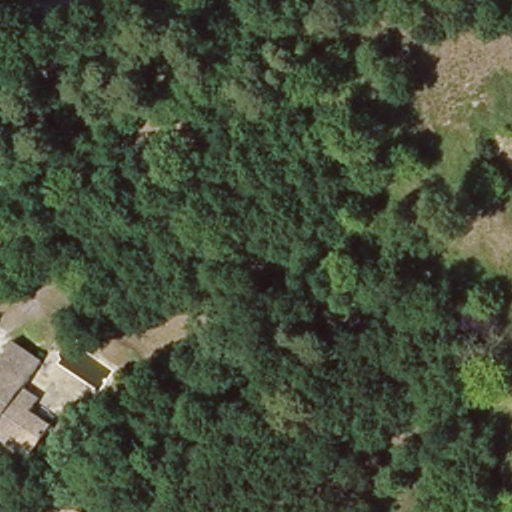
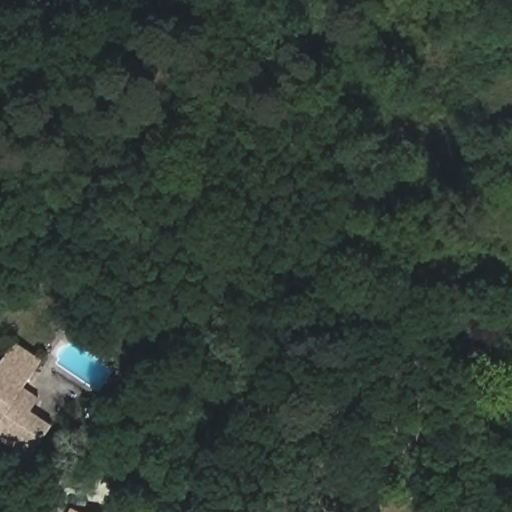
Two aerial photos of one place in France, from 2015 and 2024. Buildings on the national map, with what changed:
unchanged [(0,440),(0,359),(12,340),(40,358),(26,378),(21,386),(38,397),(29,410),(50,423),(35,446),(26,458),(14,449),(0,440)]
unchanged [(72,512),(68,512),(69,510),(72,512)]

